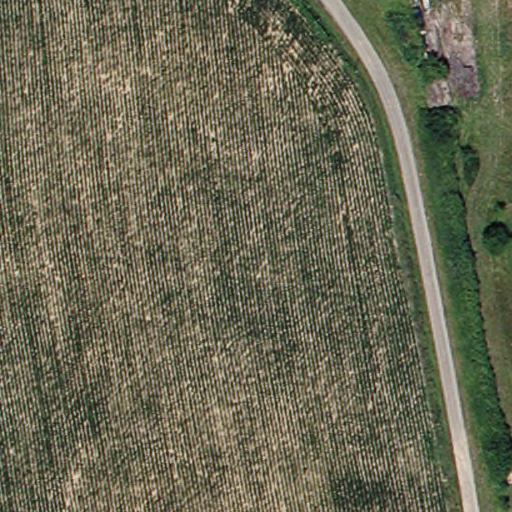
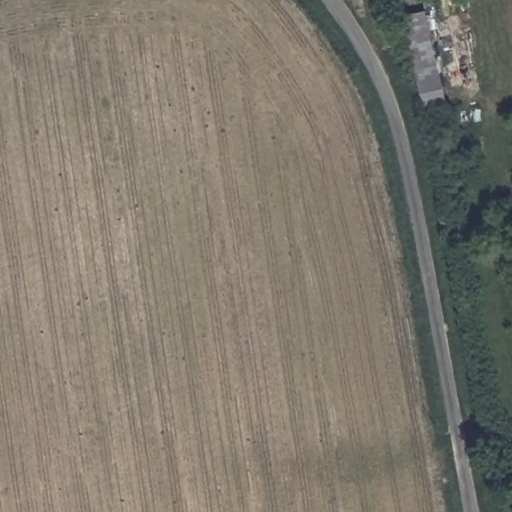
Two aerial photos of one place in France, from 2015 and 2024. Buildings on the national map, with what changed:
new [(445,74),(441,74),(448,98),(425,105),(399,18),(425,10),(445,74)]

